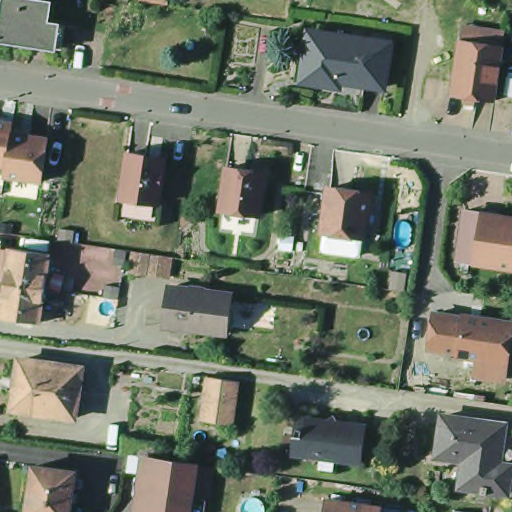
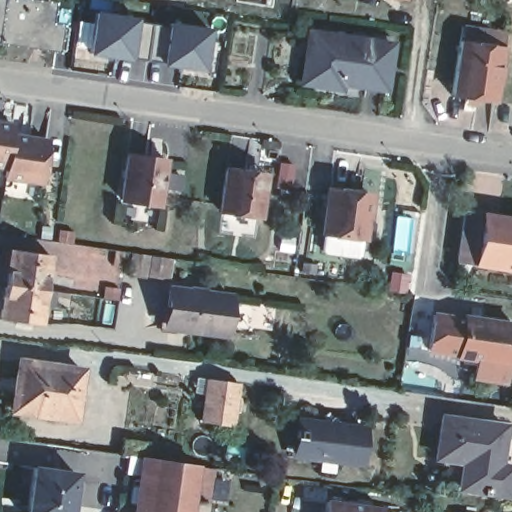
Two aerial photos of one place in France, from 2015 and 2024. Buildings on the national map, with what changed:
unchanged [(35,48),(0,43),(0,0),(20,0),(51,4),(48,25),(59,27),(55,51),(35,48)]
new [(78,19),(92,21),(95,9),(137,15),(136,20),(159,24),(156,47),(153,60),(130,56),(130,60),(88,54),(88,49),(74,46),(78,19)]
new [(159,24),(167,24),(168,20),(209,26),(202,70),(158,64),(160,48),(156,47),(159,24)]
unchanged [(453,94),(461,40),(463,25),(505,31),(503,46),(495,100),(453,94)]
unchanged [(385,93),(342,85),(341,90),(315,86),(303,84),(310,35),(322,38),(392,48),(385,93)]
unchanged [(10,123),(9,133),(46,138),(40,180),(3,175),(3,174),(4,165),(0,164),(0,122),(10,123)]
unchanged [(164,158),(157,203),(115,197),(122,152),(164,158)]
unchanged [(265,173),(259,215),(219,209),(225,167),(265,173)]
unchanged [(372,190),(369,220),(366,219),(363,239),(360,238),(359,254),(321,250),(322,232),(319,231),(324,184),(372,190)]
unchanged [(469,264),(476,214),(512,219),(512,270),(469,264)]
unchanged [(2,316),(8,282),(13,247),(53,254),(47,288),(42,323),(2,316)]
unchanged [(226,334),(158,315),(168,279),(129,273),(130,249),(172,255),(169,279),(236,298),(226,334)]
unchanged [(427,346),(432,312),(462,317),(462,314),(511,321),(506,360),(457,353),(457,351),(427,346)]
unchanged [(68,424),(6,414),(15,364),(76,374),(68,424)]
unchanged [(206,382),(236,386),(231,424),(201,420),(206,382)]
unchanged [(502,488),(482,485),(482,489),(475,489),(475,484),(454,482),(457,454),(430,450),(436,411),(498,419),(509,421),(504,459),(506,459),(502,488)]
unchanged [(363,466),(303,456),(306,441),(301,439),(303,433),(307,433),(309,424),(332,428),(339,422),(345,429),(369,434),(363,466)]
unchanged [(153,492),(155,474),(133,471),(135,454),(127,453),(129,437),(160,441),(158,458),(157,460),(183,464),(183,461),(184,455),(195,457),(194,463),(194,465),(200,466),(198,481),(196,498),(194,512),(149,512),(153,492)]
unchanged [(31,476),(32,467),(74,473),(73,481),(68,512),(25,512),(31,476)]
unchanged [(385,512),(326,512),(328,502),(385,510),(385,512)]

